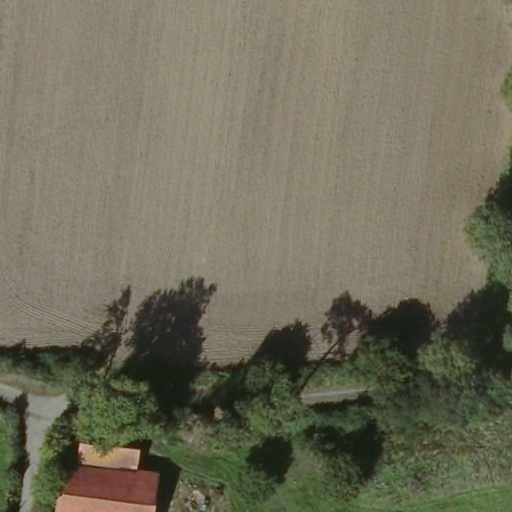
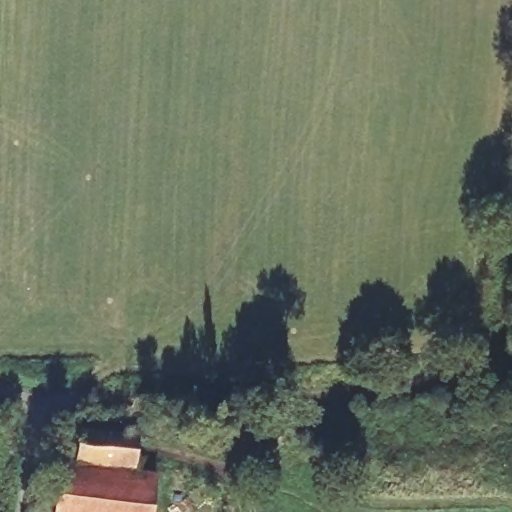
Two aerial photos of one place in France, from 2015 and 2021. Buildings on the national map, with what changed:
unchanged [(71,481),(74,447),(133,451),(131,486),(71,481)]
unchanged [(56,480),(71,481),(131,486),(150,488),(148,512),(53,512),(56,480)]

